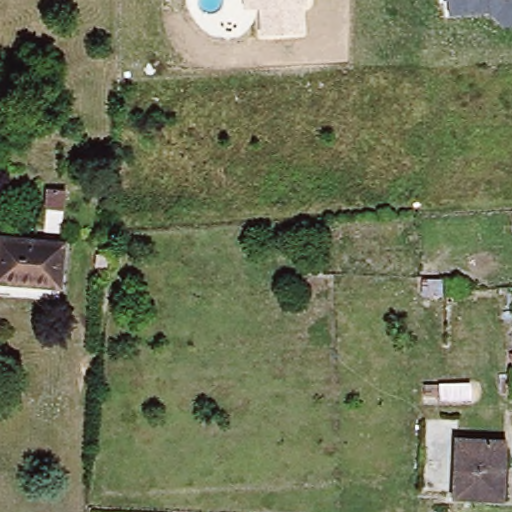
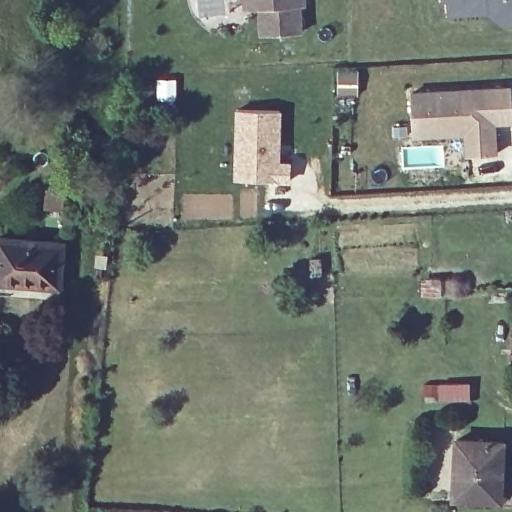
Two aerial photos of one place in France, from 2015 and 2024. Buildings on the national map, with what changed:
unchanged [(301,6),(302,33),(261,36),(258,8),(245,10),(245,0),(305,0),(305,5),(301,6)]
unchanged [(505,8),(449,11),(448,0),(512,0),(512,13),(509,13),(505,8)]
new [(510,89),(511,123),(491,124),(493,156),(465,156),(463,135),(411,137),(409,94),(510,89)]
new [(277,113),(275,166),(286,166),(285,183),(232,182),(235,111),(277,113)]
unchanged [(62,287),(0,283),(0,237),(63,242),(62,287)]
unchanged [(511,353),(512,353),(512,360),(511,353)]
unchanged [(453,495),(461,436),(496,440),(505,441),(498,500),(453,495)]

